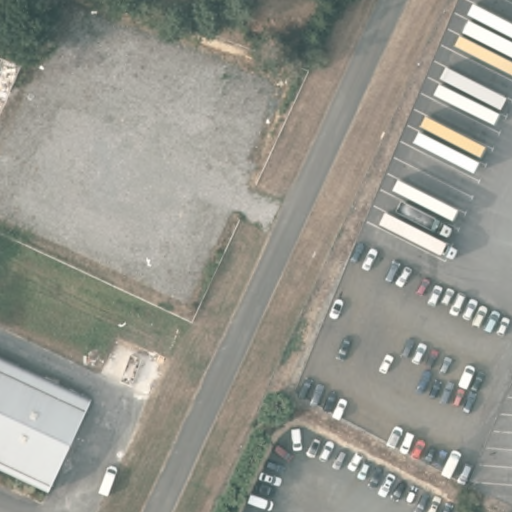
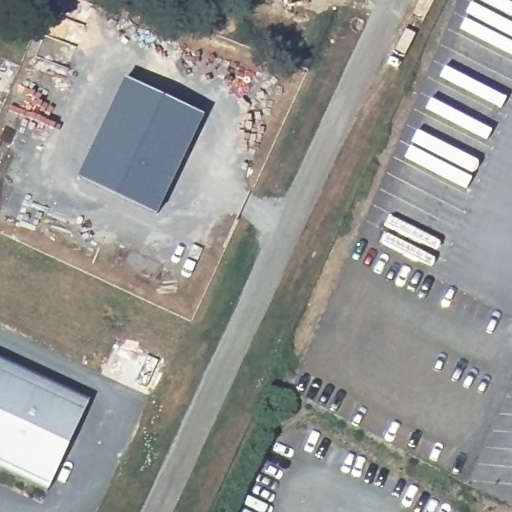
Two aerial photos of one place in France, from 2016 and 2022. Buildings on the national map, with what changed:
new [(157,215),(78,178),(125,78),(206,115),(157,215)]
unchanged [(85,404),(0,369),(0,358),(88,395),(85,404)]
unchanged [(49,490),(0,469),(0,369),(85,404),(49,490)]

